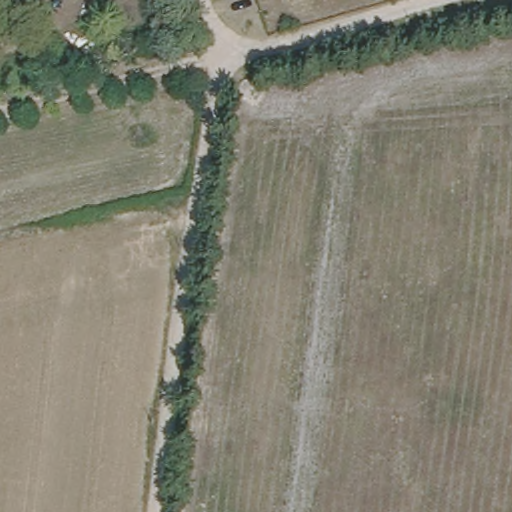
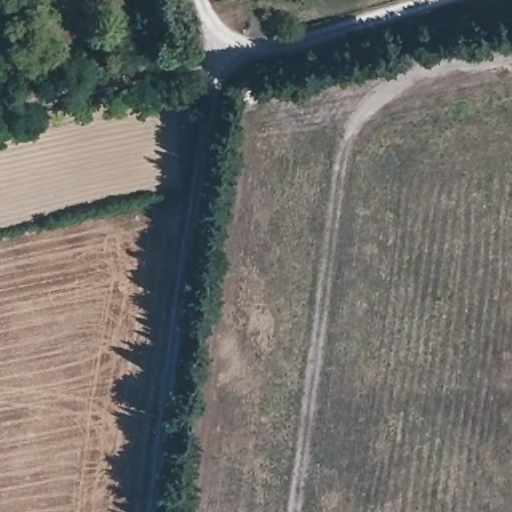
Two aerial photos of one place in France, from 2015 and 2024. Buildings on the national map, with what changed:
unchanged [(192,72),(196,91),(183,94),(179,74),(192,72)]

